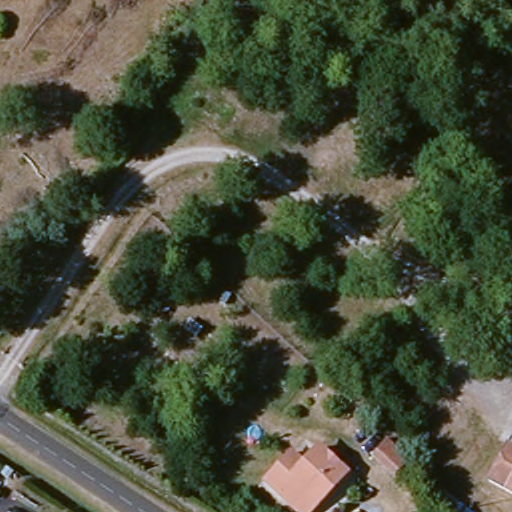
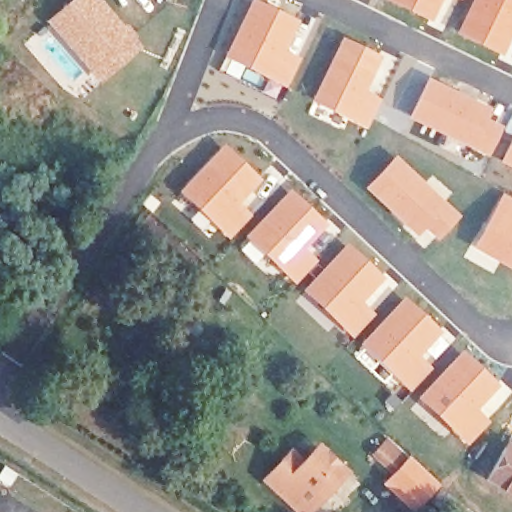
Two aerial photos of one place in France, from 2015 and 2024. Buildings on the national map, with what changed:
new [(101,81),(92,69),(49,21),(73,0),(98,0),(129,37),(139,48),(101,81)]
new [(251,0),(258,0),(302,23),(289,50),(302,57),(287,88),(224,58),(251,0)]
new [(432,22),(388,0),(443,0),(432,22)]
new [(472,0),(512,0),(512,41),(505,57),(456,33),(472,0)]
new [(341,36),(384,57),(367,91),(383,99),(367,129),(311,101),(341,36)]
new [(428,77),(493,109),(488,118),(503,126),(489,157),(408,117),(428,77)]
new [(512,139),(512,168),(501,162),(512,139)]
new [(222,143),(262,180),(240,204),(252,215),(227,240),(177,192),(222,143)]
new [(395,153),(427,183),(428,181),(462,217),(437,242),(433,239),(425,248),(362,187),(395,153)]
new [(502,193),(512,199),(512,272),(467,249),(502,193)]
new [(325,225),(302,250),(314,261),(294,282),(246,238),(290,194),(325,225)]
new [(386,278),(362,303),(380,321),(403,297),(442,332),(420,354),(434,368),(409,392),(302,290),(347,243),(386,278)]
new [(497,386),(473,409),(487,422),(468,441),(421,399),(463,355),(497,386)]
unchanged [(408,458),(393,474),(375,455),(389,440),(408,458)]
unchanged [(479,480),(498,445),(512,453),(512,498),(479,480)]
unchanged [(289,512),(262,487),(287,459),(298,470),(314,454),(340,478),(326,493),(317,502),(308,512),(289,512)]

